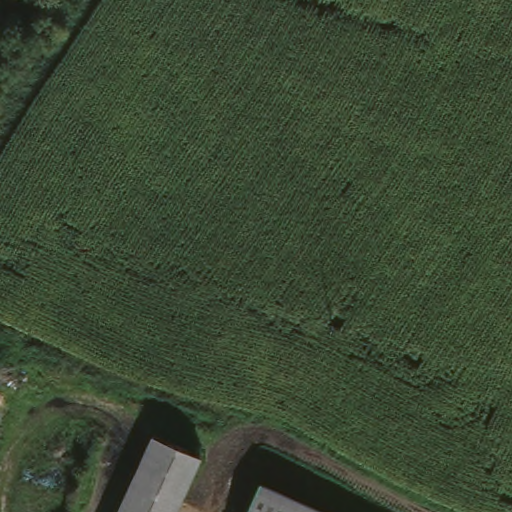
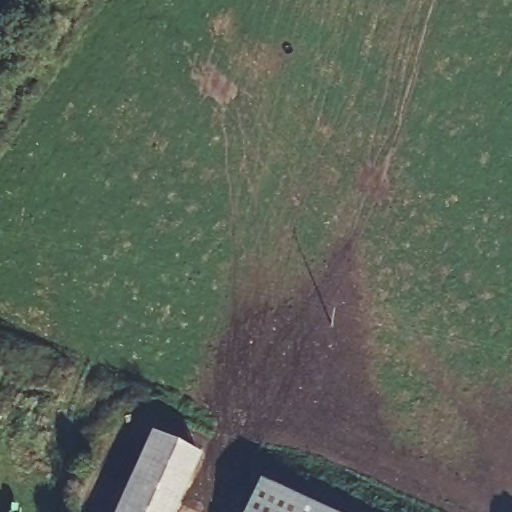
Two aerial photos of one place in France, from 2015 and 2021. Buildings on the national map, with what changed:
unchanged [(175,512),(118,512),(152,436),(200,457),(175,512)]
unchanged [(317,512),(254,512),(264,488),(317,512)]

